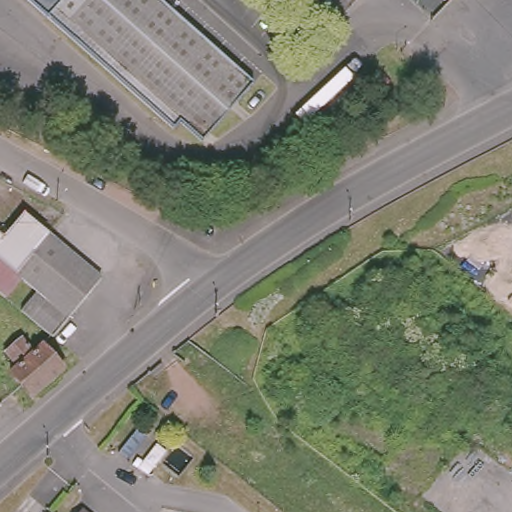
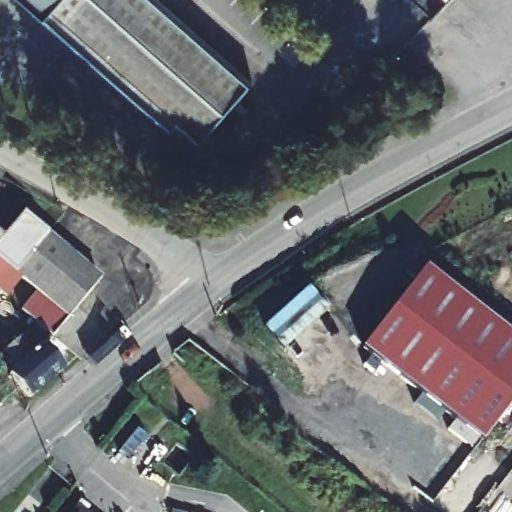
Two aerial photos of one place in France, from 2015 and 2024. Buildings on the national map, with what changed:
unchanged [(29,0),(75,0),(55,23),(29,0)]
unchanged [(193,142),(55,23),(75,0),(157,0),(248,80),(193,142)]
unchanged [(46,333),(22,313),(38,293),(22,279),(7,298),(0,292),(0,236),(5,240),(25,215),(102,281),(53,339),(46,333)]
new [(512,336),(512,402),(481,442),(472,451),(447,430),(455,422),(445,413),(437,423),(413,406),(422,395),(380,363),(373,374),(363,366),(370,356),(362,348),(425,267),(512,336)]
unchanged [(37,354),(45,348),(65,372),(33,398),(14,374),(20,370),(7,353),(2,357),(0,355),(0,344),(7,339),(13,347),(24,338),(37,354)]
unchanged [(89,512),(76,512),(82,505),(89,512)]

